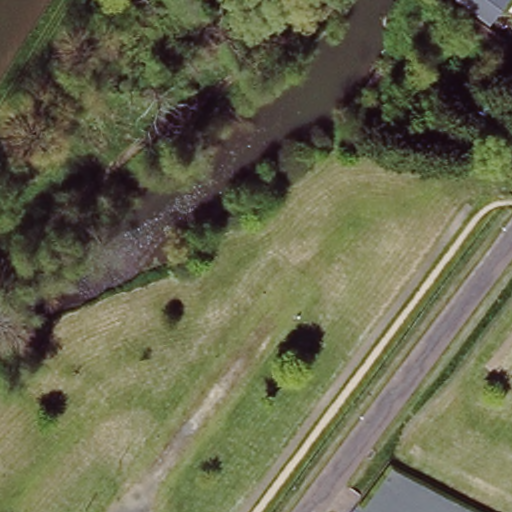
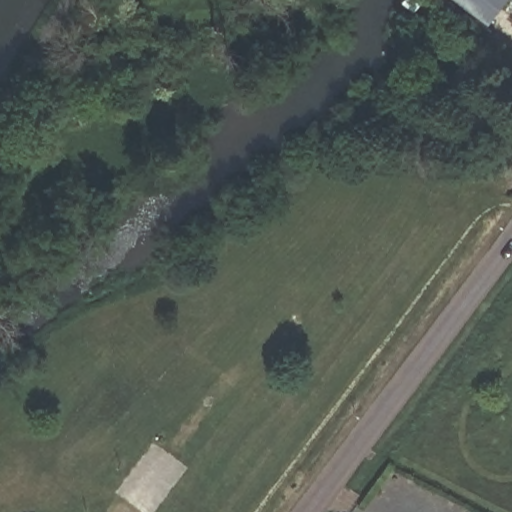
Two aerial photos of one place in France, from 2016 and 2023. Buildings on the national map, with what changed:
unchanged [(512,2),(489,26),(457,0),(512,0),(512,2)]
unchanged [(486,120),(461,107),(475,83),(496,96),(486,120)]

